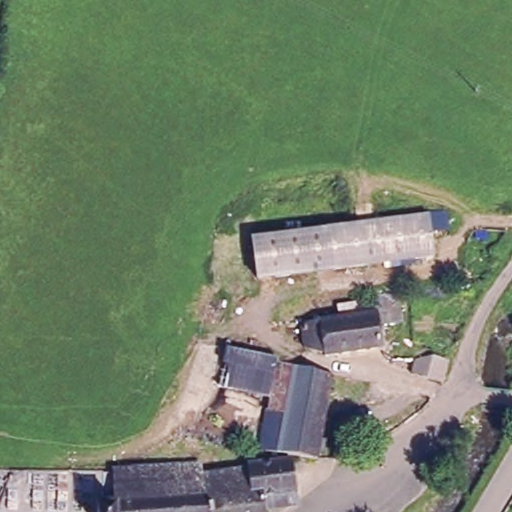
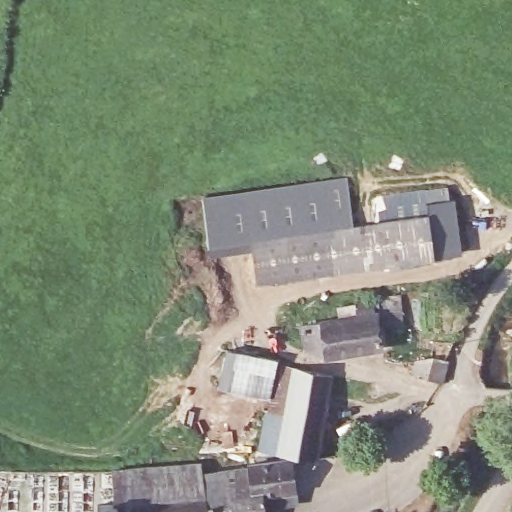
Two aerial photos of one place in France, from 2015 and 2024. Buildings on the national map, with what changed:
new [(427,220),(354,227),(326,230),(317,232),(248,241),(249,250),(210,252),(202,197),(347,178),(350,205),(373,203),(372,196),(425,189),(427,220)]
unchanged [(427,220),(431,256),(329,268),(326,230),(427,220)]
unchanged [(252,279),(248,241),(317,232),(326,230),(329,268),(306,271),(252,279)]
unchanged [(382,349),(324,358),(306,351),(304,325),(343,318),(342,306),(360,303),(378,300),(405,296),(408,320),(380,325),(381,336),(389,335),(391,348),(382,349)]
unchanged [(448,364),(431,359),(434,346),(437,338),(454,343),(448,364)]
unchanged [(274,400),(226,391),(232,353),(281,361),(274,400)]
unchanged [(273,405),(277,406),(284,364),(299,367),(335,373),(320,457),(298,454),(263,447),(273,405)]
unchanged [(267,512),(203,512),(197,474),(241,470),(240,463),(297,459),(298,487),(300,502),(265,505),(267,512)]
unchanged [(112,501),(112,472),(196,466),(197,474),(203,512),(94,512),(94,502),(112,501)]

